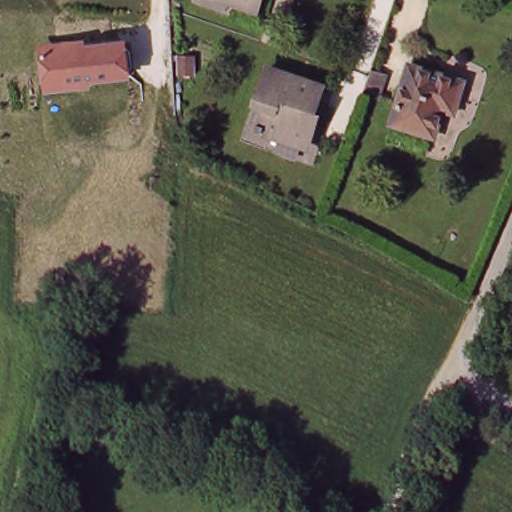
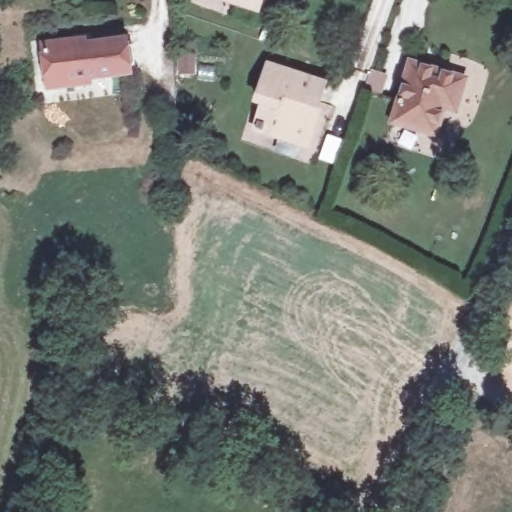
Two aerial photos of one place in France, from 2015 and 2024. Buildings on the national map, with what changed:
unchanged [(258,15),(215,0),(263,0),(258,15)]
unchanged [(136,78),(95,83),(95,88),(47,93),(42,43),(93,37),(95,41),(131,37),(136,78)]
unchanged [(450,105),(439,101),(429,129),(391,116),(410,59),(460,76),(450,105)]
unchanged [(307,150),(255,133),(260,118),(252,115),(267,73),(321,92),(313,118),(317,121),(307,150)]

